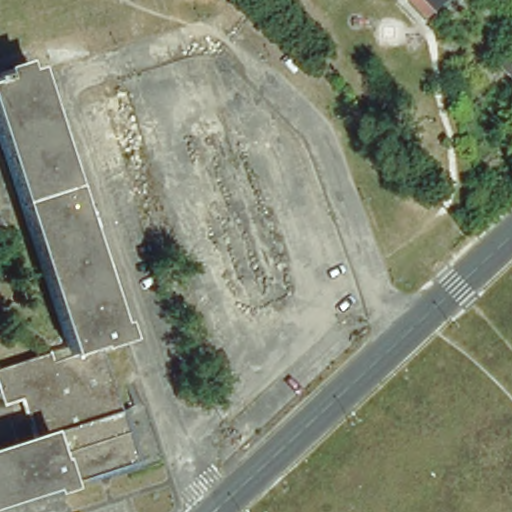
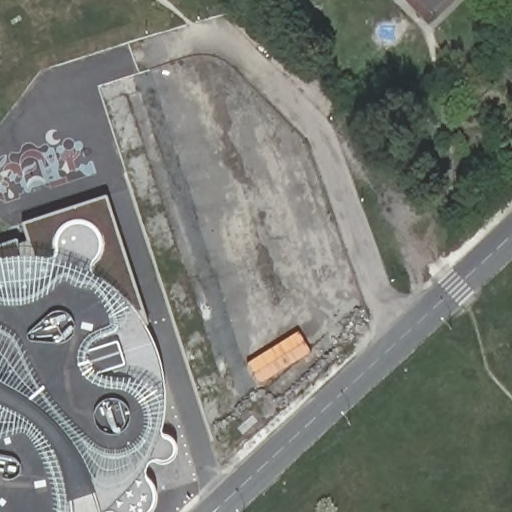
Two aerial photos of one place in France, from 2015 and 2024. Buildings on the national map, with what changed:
unchanged [(424,21),(409,5),(414,0),(447,0),(424,21)]
unchanged [(512,78),(490,58),(502,44),(512,54),(512,78)]
demolished [(109,325),(116,325),(120,340),(94,348),(115,409),(127,405),(120,386),(131,383),(138,403),(141,401),(157,452),(153,453),(154,461),(114,474),(112,468),(59,484),(59,491),(44,497),(43,493),(0,506),(0,448),(27,439),(13,400),(0,405),(0,368),(40,354),(42,362),(63,355),(0,161),(0,69),(20,63),(21,67),(23,74),(29,73),(109,325)]
new [(0,512),(0,245),(14,240),(16,240),(17,240),(18,240),(19,241),(21,244),(28,242),(24,228),(22,225),(22,224),(23,224),(24,223),(106,196),(107,196),(108,196),(109,198),(129,257),(143,301),(149,325),(147,326),(150,332),(156,344),(161,355),(165,368),(167,382),(167,395),(168,405),(167,416),(164,432),(165,435),(168,437),(173,438),(177,443),(179,449),(178,455),(175,461),(170,464),(165,466),(159,464),(155,463),(152,464),(149,467),(148,472),(149,477),(153,482),(158,490),(159,497),(158,504),(155,511),(155,512),(100,512),(99,510),(95,495),(73,503),(73,512),(0,512)]

